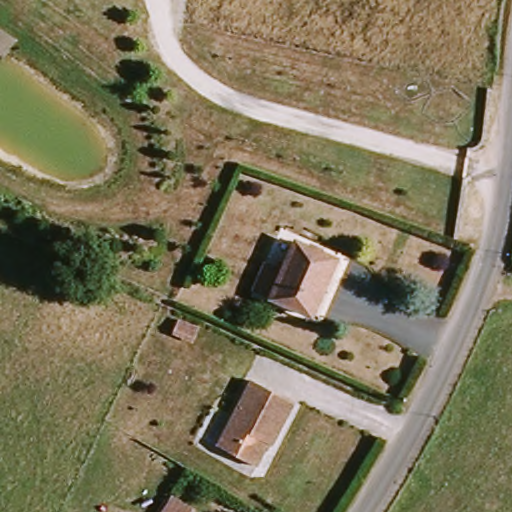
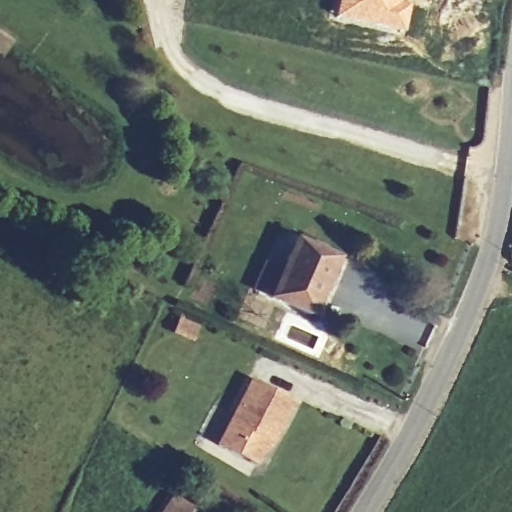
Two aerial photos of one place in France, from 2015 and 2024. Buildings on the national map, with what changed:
new [(406,0),(411,1),(405,33),(333,17),(337,0),(406,0)]
unchanged [(313,317),(301,312),(265,297),(288,244),(330,261),(321,280),(327,282),(313,317)]
unchanged [(255,381),(294,402),(272,445),(265,445),(257,461),(220,440),(255,381)]
unchanged [(166,497),(190,512),(189,512),(156,512),(166,497)]

